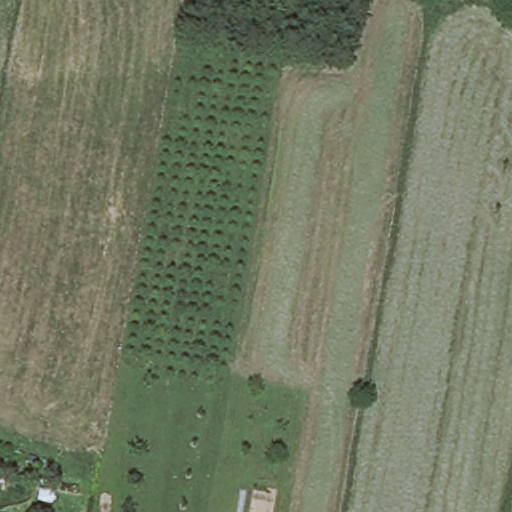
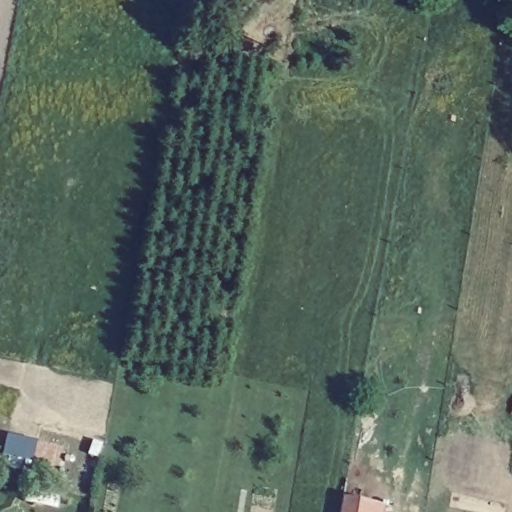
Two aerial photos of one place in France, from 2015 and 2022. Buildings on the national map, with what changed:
new [(384,512),(342,512),(345,494),(386,504),(384,512)]

